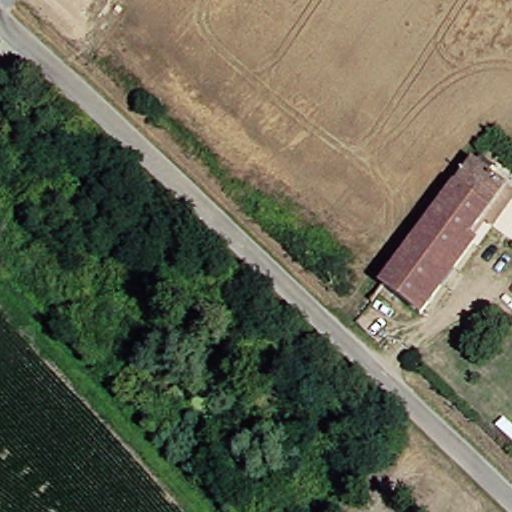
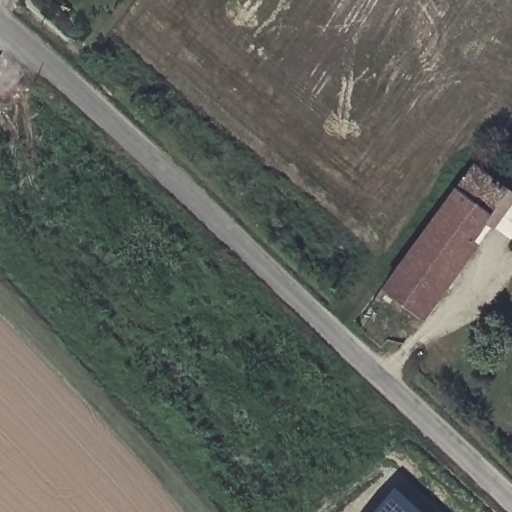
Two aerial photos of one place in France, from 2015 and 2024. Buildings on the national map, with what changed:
unchanged [(462,167),(497,194),(505,200),(468,252),(463,247),(412,317),(372,288),(462,167)]
new [(423,512),(370,512),(394,486),(423,512)]

